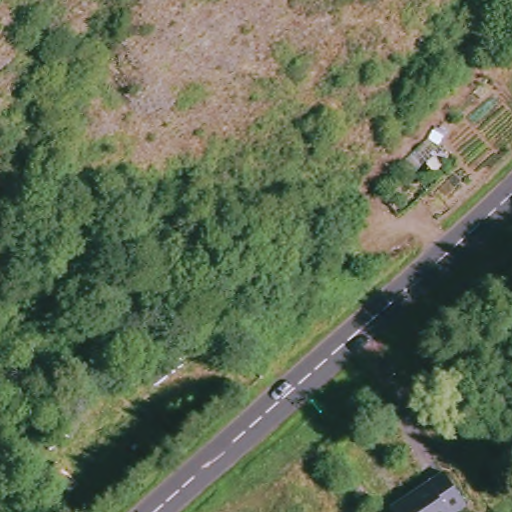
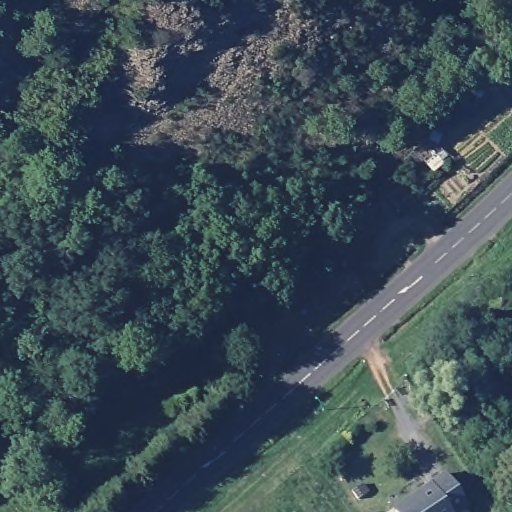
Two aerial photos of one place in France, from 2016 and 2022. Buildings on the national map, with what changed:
unchanged [(397,512),(395,509),(432,485),(449,474),(467,502),(471,507),(464,512),(397,512)]

